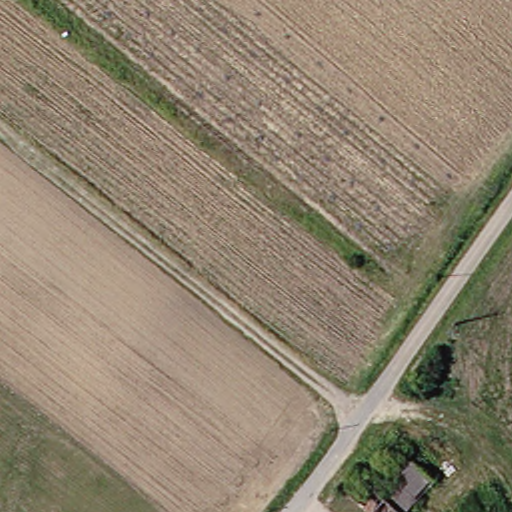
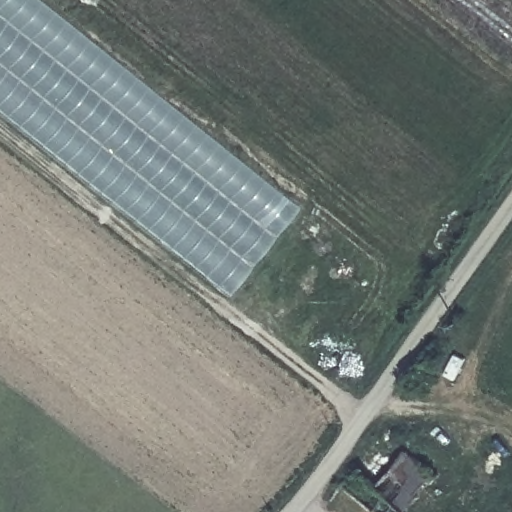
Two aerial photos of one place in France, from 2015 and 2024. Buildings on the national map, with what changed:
new [(227,300),(0,115),(0,0),(34,0),(295,212),(227,300)]
demolished [(396,512),(367,512),(346,496),(360,478),(368,487),(402,452),(430,478),(396,511),(396,512)]

